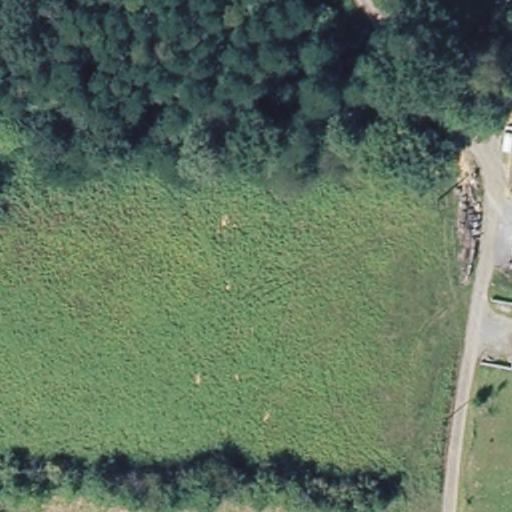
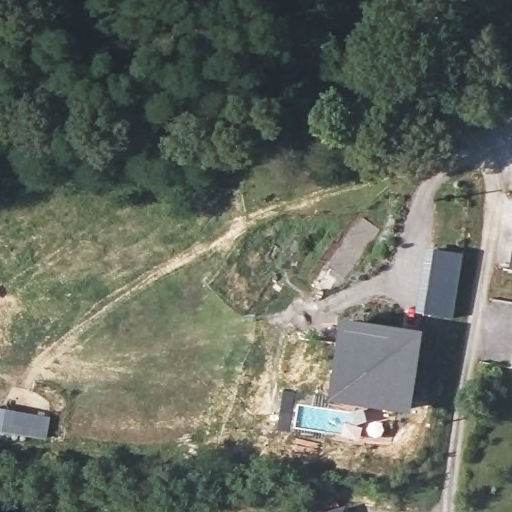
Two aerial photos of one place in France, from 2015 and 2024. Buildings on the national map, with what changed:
unchanged [(512,264),(512,269),(511,268),(512,264)]
new [(331,402),(342,318),(425,330),(412,412),(331,402)]
new [(347,507),(349,512),(331,512),(347,507)]

